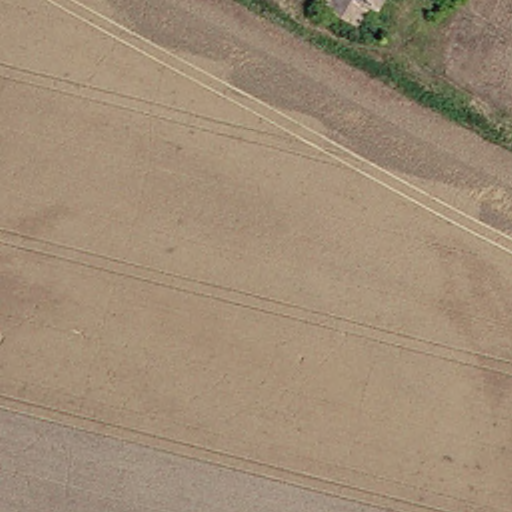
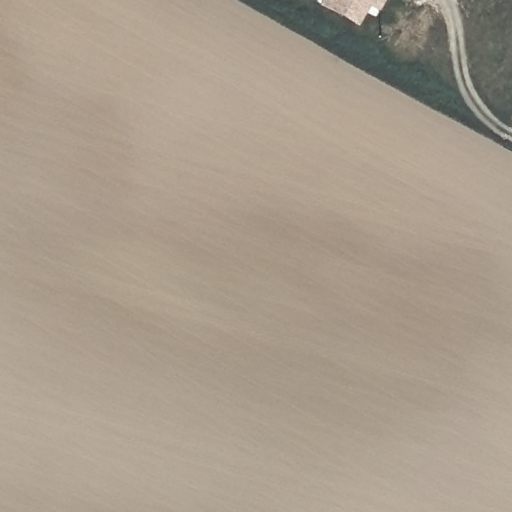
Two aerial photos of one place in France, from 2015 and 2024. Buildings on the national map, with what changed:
unchanged [(320,10),(326,0),(382,0),(376,10),(362,2),(348,26),(320,10)]

